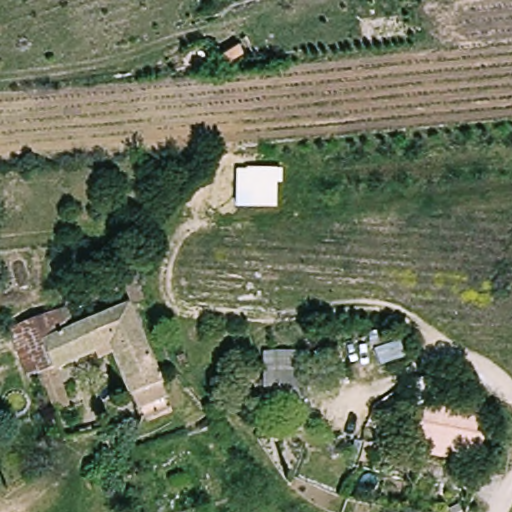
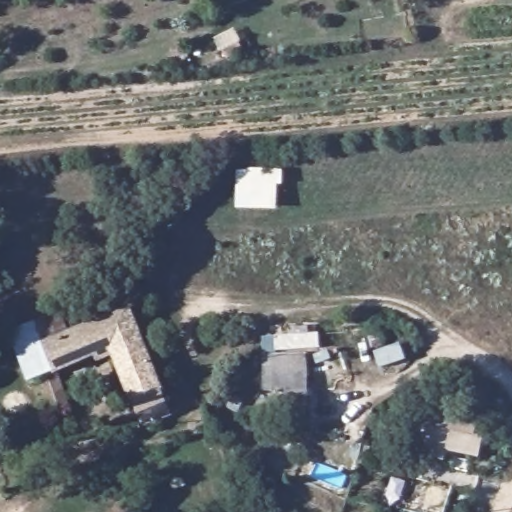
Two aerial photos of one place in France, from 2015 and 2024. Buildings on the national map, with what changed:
unchanged [(277,212),(236,209),(236,170),(284,171),(284,186),(277,187),(277,212)]
unchanged [(134,305),(139,313),(170,385),(132,400),(116,359),(67,378),(78,409),(57,417),(47,389),(30,343),(62,331),(134,303),(134,305)]
unchanged [(30,343),(47,389),(28,397),(6,337),(56,318),(62,331),(30,343)]
unchanged [(314,356),(310,406),(280,403),(281,388),(270,387),(273,352),(314,356)]
unchanged [(447,380),(444,402),(430,402),(430,380),(447,380)]
unchanged [(132,400),(170,385),(179,408),(145,432),(132,400)]
unchanged [(483,421),(490,422),(486,438),(495,441),(490,461),(484,459),(458,452),(459,448),(432,441),(436,425),(435,424),(439,409),(483,421)]

